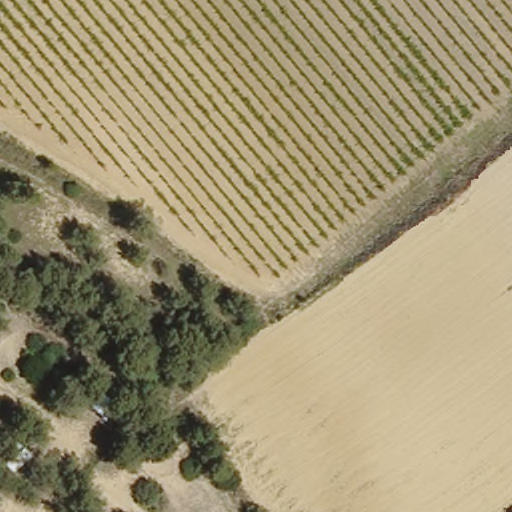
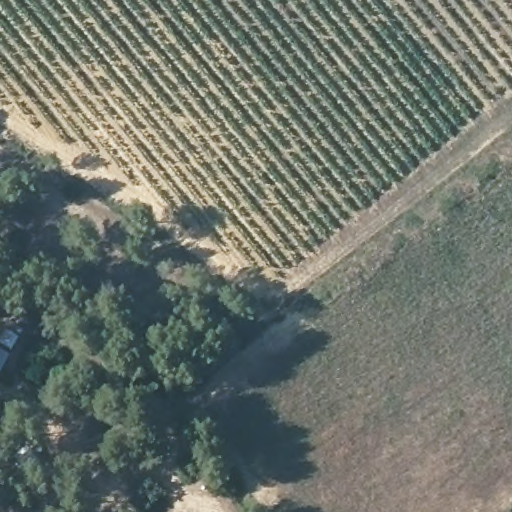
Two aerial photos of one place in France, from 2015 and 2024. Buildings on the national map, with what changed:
[]

